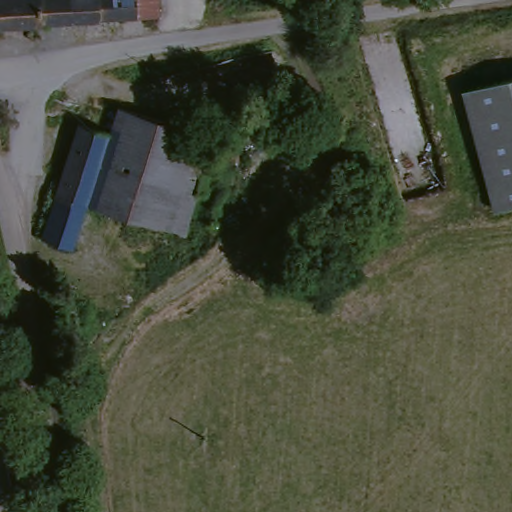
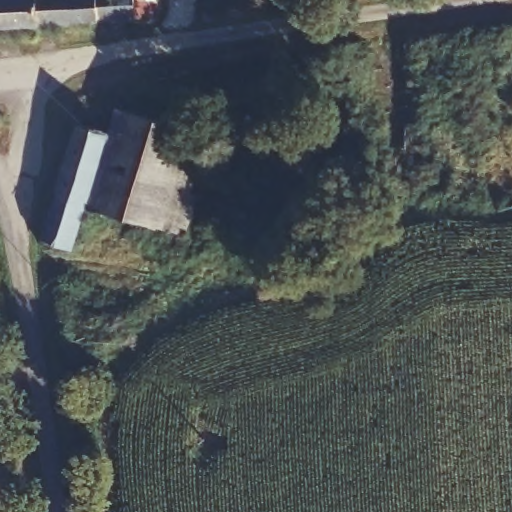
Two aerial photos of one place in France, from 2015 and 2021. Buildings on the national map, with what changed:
unchanged [(138,11),(79,14),(19,18),(0,19),(0,0),(157,0),(158,10),(138,11)]
demolished [(200,6),(158,10),(157,0),(200,0),(200,6)]
demolished [(512,74),(512,206),(493,212),(458,89),(512,74)]
unchanged [(82,203),(103,134),(111,115),(193,138),(161,227),(82,203)]
unchanged [(67,248),(41,240),(76,126),(103,134),(82,203),(67,248)]

